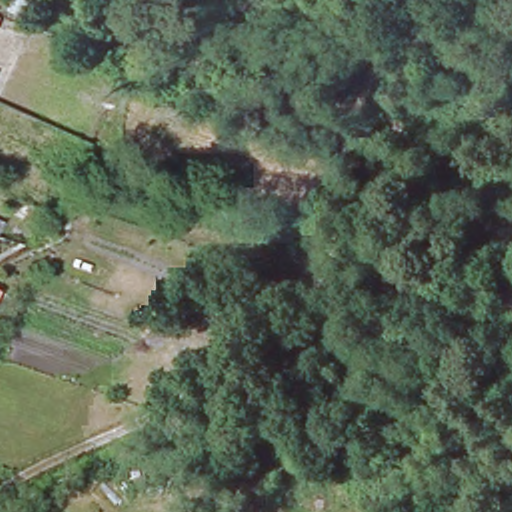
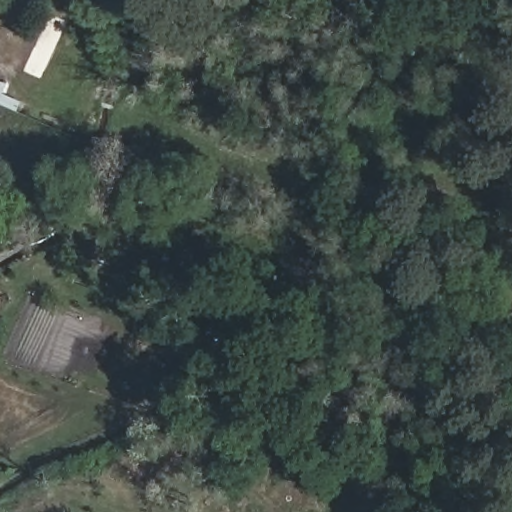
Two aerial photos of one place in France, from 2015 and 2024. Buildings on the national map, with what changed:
unchanged [(9,290),(0,304),(0,286),(0,285),(9,290)]

